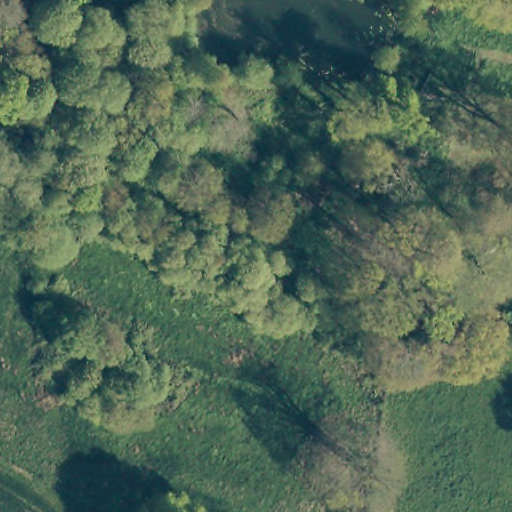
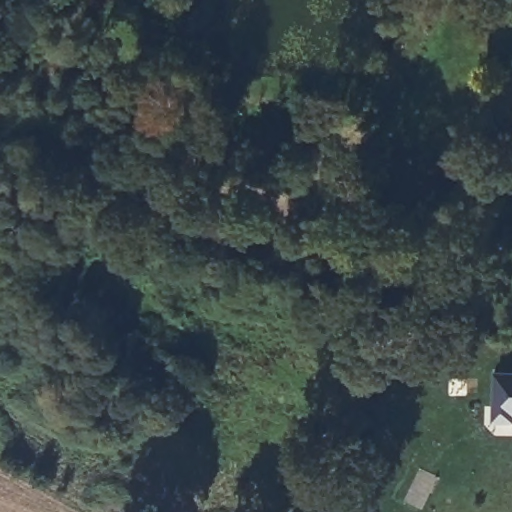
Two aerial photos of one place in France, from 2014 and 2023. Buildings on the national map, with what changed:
new [(497,371),(512,372),(512,423),(495,422),(497,371)]

